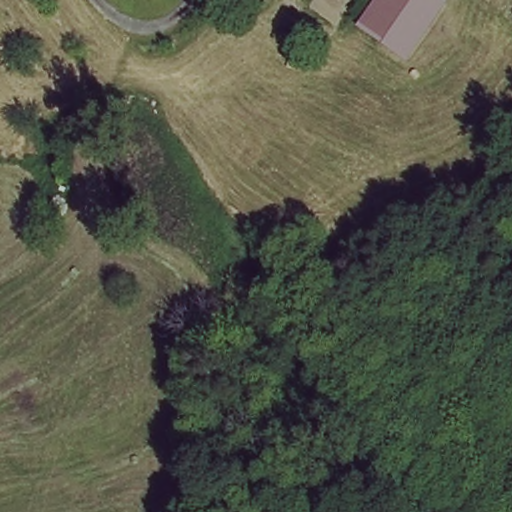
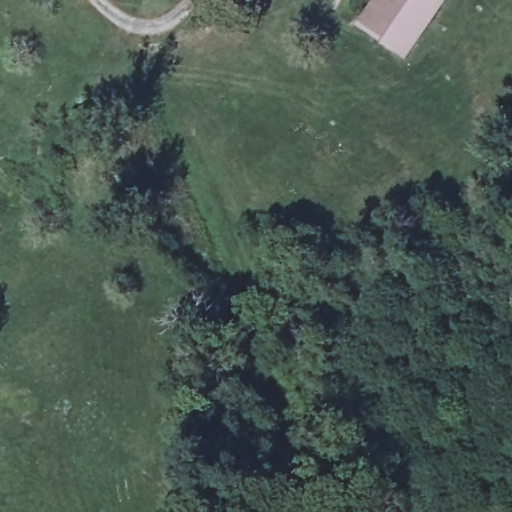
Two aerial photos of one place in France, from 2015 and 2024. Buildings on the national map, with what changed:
unchanged [(408,57),(360,21),(374,0),(447,0),(408,57)]

